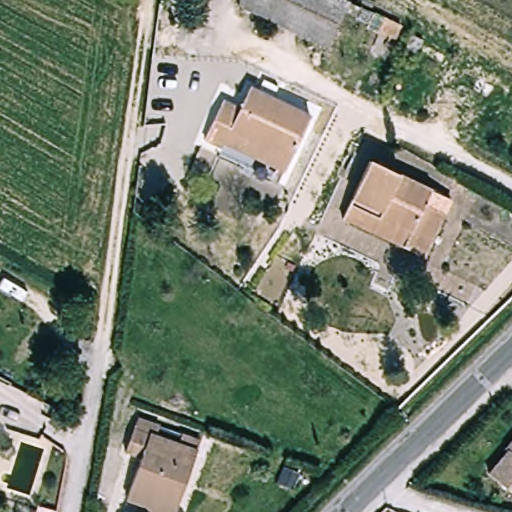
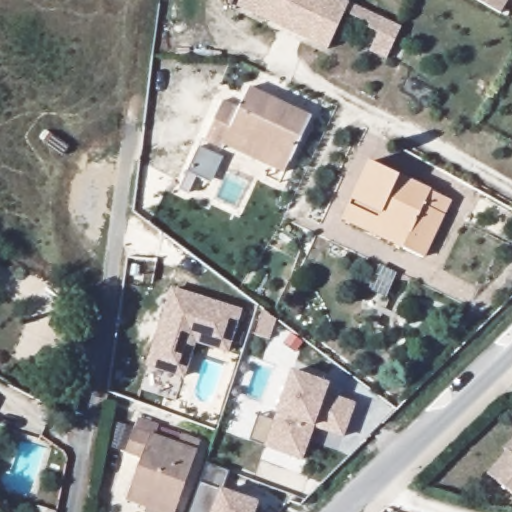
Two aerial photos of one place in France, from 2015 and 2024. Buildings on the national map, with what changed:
unchanged [(327,52),(242,9),(246,0),(337,0),(349,6),(327,52)]
unchanged [(375,11),(402,25),(384,61),(359,51),(375,11)]
unchanged [(223,151),(205,142),(224,107),(243,113),(255,91),(308,118),(291,158),(287,172),(229,146),(223,151)]
unchanged [(347,206),(369,161),(429,190),(424,204),(440,212),(421,254),(403,247),(342,219),(347,206)]
new [(171,287),(243,310),(229,355),(196,345),(185,379),(145,367),(171,287)]
new [(263,447),(248,442),(257,415),(273,420),(276,413),(291,371),(329,383),(327,394),(356,403),(344,438),(314,429),(303,461),(263,447)]
unchanged [(181,510),(135,495),(146,455),(131,448),(138,427),(201,450),(181,510)]
unchanged [(507,451),(504,448),(512,438),(512,497),(487,475),(507,451)]
new [(227,472),(222,489),(260,502),(256,512),(190,512),(207,465),(227,472)]

